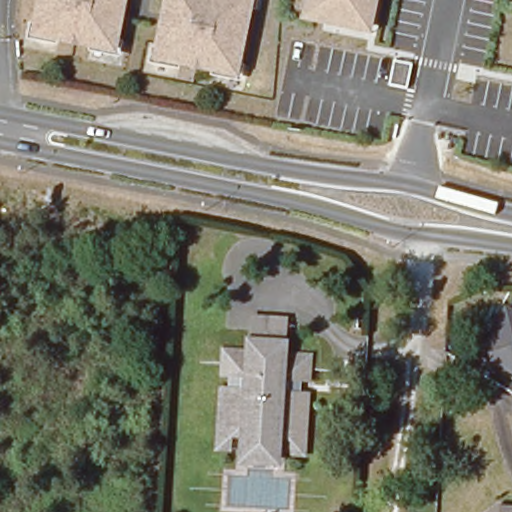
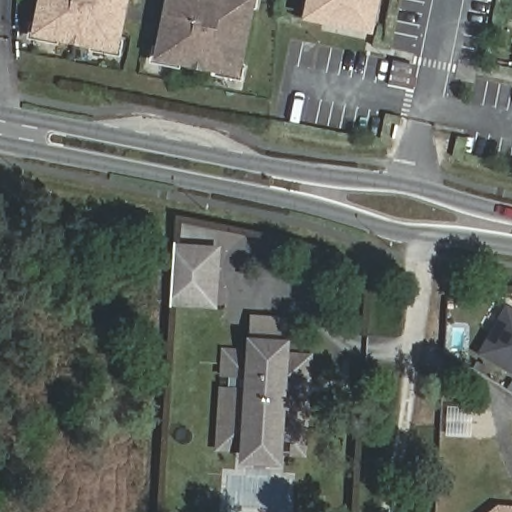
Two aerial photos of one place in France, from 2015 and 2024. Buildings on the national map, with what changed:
unchanged [(117,6),(114,19),(122,20),(117,42),(109,41),(107,50),(42,36),(44,26),(37,25),(42,0),(126,0),(124,9),(117,6)]
unchanged [(250,9),(238,65),(230,63),(228,73),(163,58),(165,49),(158,46),(163,25),(170,26),(173,15),(165,12),(168,0),(245,0),(243,6),(250,9)]
unchanged [(372,3),(366,27),(305,14),(309,0),(365,0),(364,1),(372,3)]
new [(216,310),(170,307),(174,243),(221,247),(216,310)]
unchanged [(481,353),(508,305),(512,307),(512,371),(481,353)]
unchanged [(248,316),(288,318),(288,341),(287,355),(313,356),(307,446),(281,445),(279,470),(238,468),(239,455),(215,454),(220,349),(246,350),(247,338),(248,316)]
unchanged [(499,506),(512,508),(512,512),(492,512),(499,506)]

